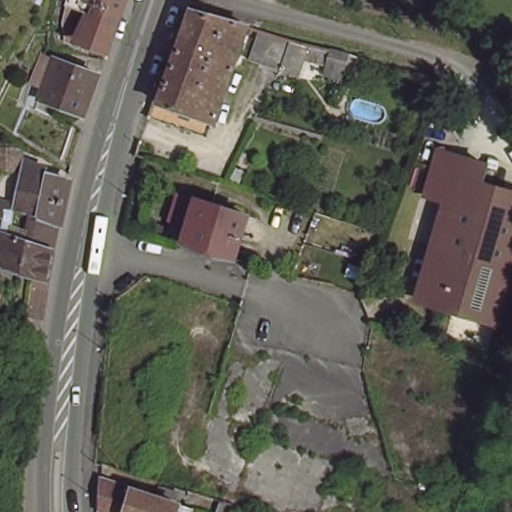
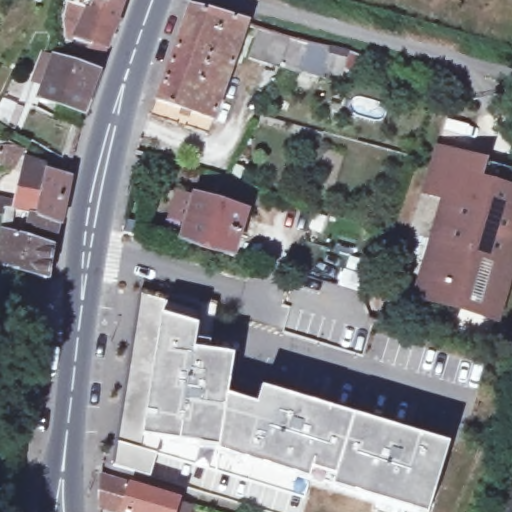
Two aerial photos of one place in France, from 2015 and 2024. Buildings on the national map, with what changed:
unchanged [(72,40),(70,18),(75,0),(92,0),(75,40),(72,40)]
unchanged [(114,46),(82,34),(96,0),(131,0),(114,46)]
unchanged [(248,23),(215,119),(172,106),(167,123),(147,118),(155,97),(160,99),(192,7),(196,8),(248,23)]
unchanged [(349,52),(342,74),(325,68),(330,46),(349,52)]
unchanged [(41,98),(55,59),(100,75),(85,116),(41,98)]
unchanged [(412,192),(433,138),(482,155),(475,179),(447,171),(438,197),(412,192)]
unchanged [(25,157),(69,174),(60,222),(57,221),(14,206),(25,157)]
unchanged [(447,171),(475,179),(512,189),(512,271),(497,323),(406,294),(438,197),(447,171)]
unchanged [(251,210),(237,256),(184,241),(197,195),(251,210)]
unchanged [(29,308),(33,270),(0,258),(0,230),(2,202),(14,206),(57,221),(45,275),(40,311),(29,308)]
new [(174,287),(231,304),(223,356),(208,354),(215,311),(172,297),(174,287)]
new [(5,290),(0,303),(0,288),(5,290)]
new [(363,487),(317,472),(309,499),(161,454),(155,476),(117,464),(142,288),(215,311),(208,354),(248,360),(242,400),(272,409),(277,392),(463,449),(447,500),(444,512),(412,512),(360,496),(363,487)]
new [(363,487),(360,496),(314,482),(317,472),(363,487)]
unchanged [(100,512),(92,509),(95,480),(150,498),(152,488),(171,493),(167,503),(172,504),(181,507),(180,512),(100,512)]

